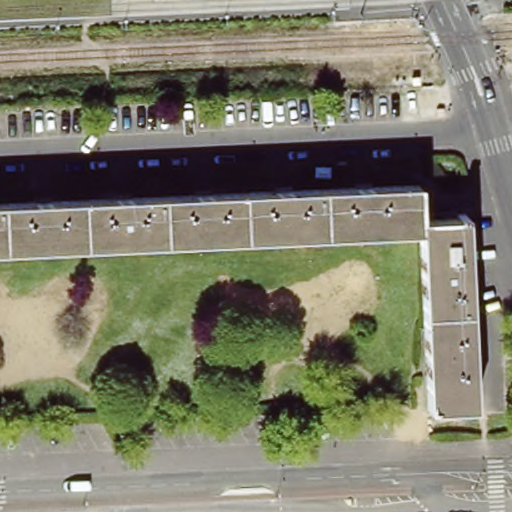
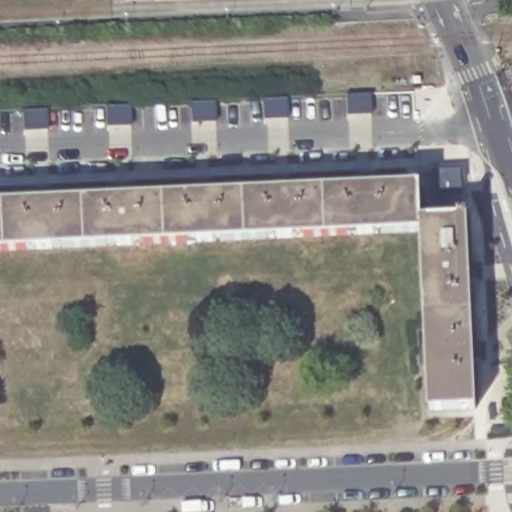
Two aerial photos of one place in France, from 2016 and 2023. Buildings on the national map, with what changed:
unchanged [(421,97),(421,108),(410,109),(410,97),(421,97)]
unchanged [(419,215),(466,213),(473,403),(426,405),(419,231),(239,239),(274,227),(381,188),(418,187),(419,215)]
unchanged [(258,194),(381,188),(274,227),(258,194)]
unchanged [(274,227),(239,239),(126,244),(106,200),(258,194),(274,227)]
unchanged [(126,244),(0,251),(0,205),(106,200),(126,244)]

